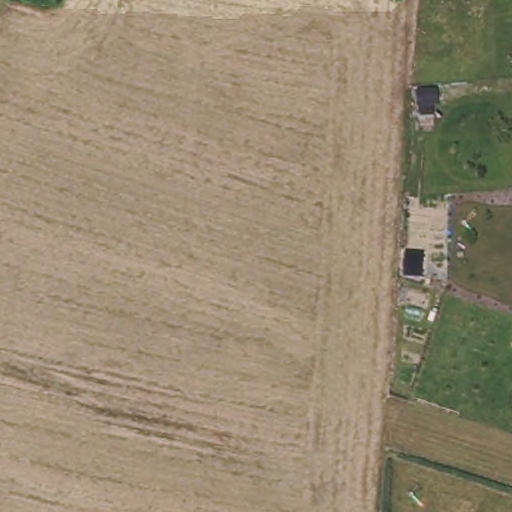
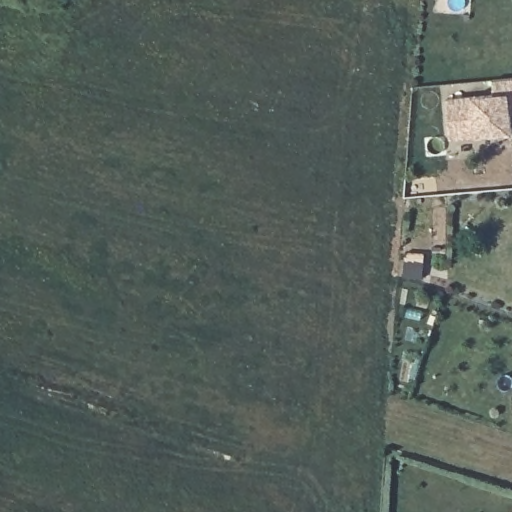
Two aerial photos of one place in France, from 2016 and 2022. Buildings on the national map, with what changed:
new [(495,92),(493,79),(512,77),(512,111),(510,111),(512,133),(476,136),(450,139),(446,97),(472,95),(495,92)]

